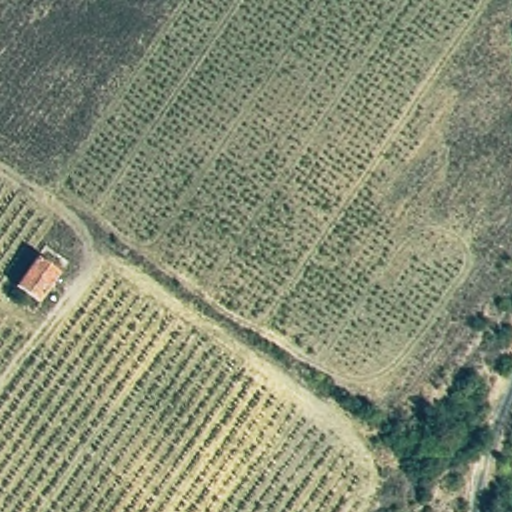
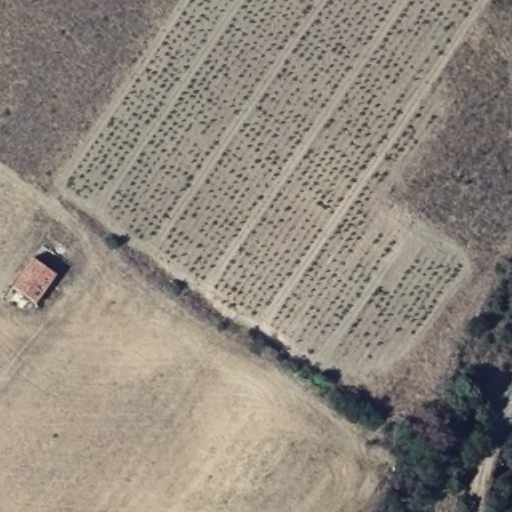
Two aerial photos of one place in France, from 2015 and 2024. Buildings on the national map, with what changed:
unchanged [(36,254),(60,269),(38,301),(12,284),(36,254)]

